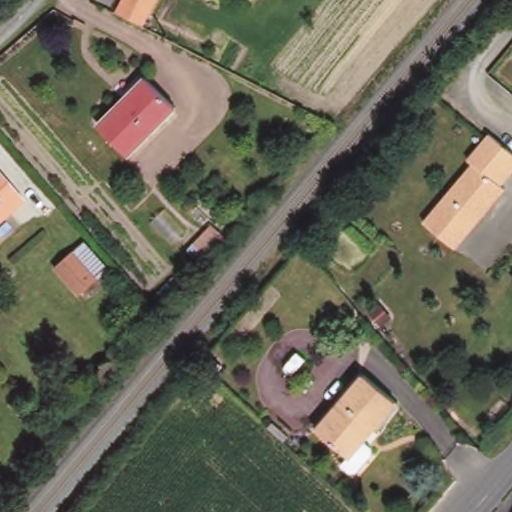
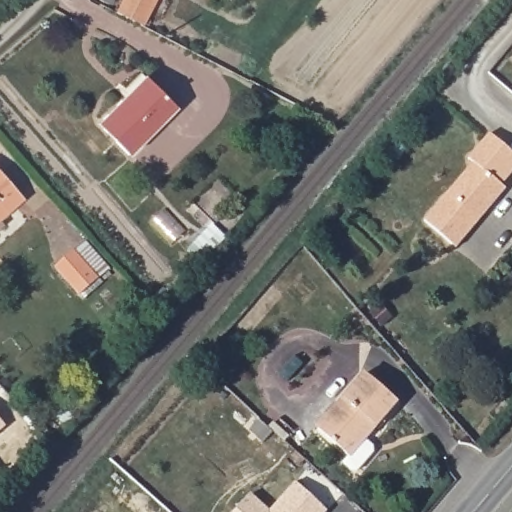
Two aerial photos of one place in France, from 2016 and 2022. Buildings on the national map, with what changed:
unchanged [(512,77),(506,83),(491,70),(500,58),(512,69),(512,77)]
unchanged [(177,107),(132,152),(101,121),(146,76),(177,107)]
unchanged [(512,172),(500,185),(505,189),(454,249),(423,221),(472,164),(467,159),(488,134),(512,154),(512,172)]
unchanged [(18,199),(0,215),(0,179),(18,199)]
unchanged [(219,234),(204,251),(191,240),(206,222),(219,234)]
unchanged [(86,241),(111,270),(102,278),(83,295),(58,266),(77,250),(86,241)]
unchanged [(395,401),(362,439),(372,448),(372,453),(356,472),(350,472),(342,465),(349,457),(315,429),(342,398),(363,373),(395,401)]
unchanged [(77,414),(70,422),(64,417),(71,409),(77,414)]
unchanged [(288,436),(284,441),(267,427),(272,422),(288,436)]
new [(268,511),(294,482),(327,510),(325,512),(234,512),(250,495),(268,511)]

